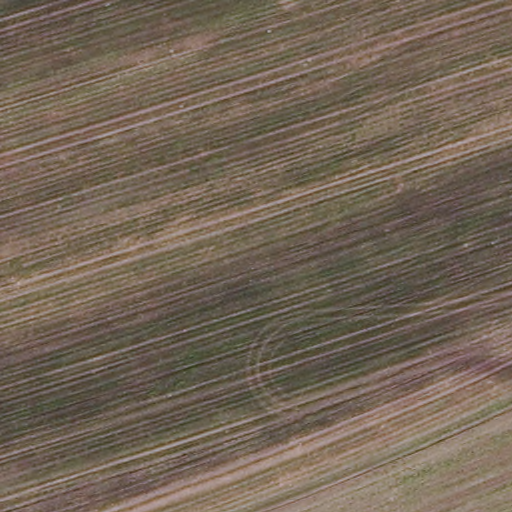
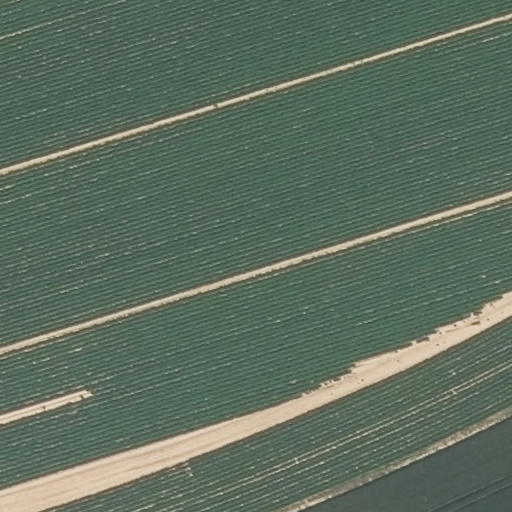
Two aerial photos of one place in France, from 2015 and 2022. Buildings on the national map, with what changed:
[]

